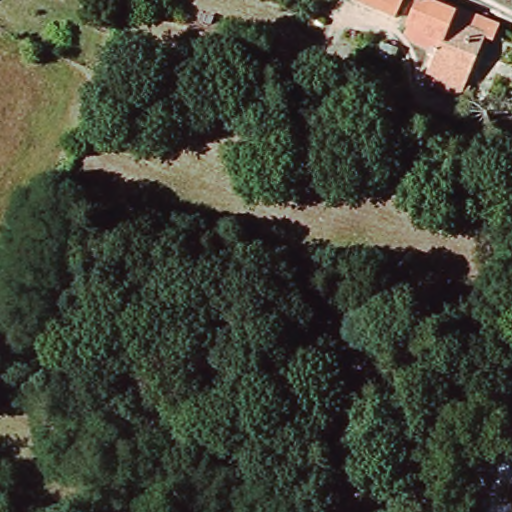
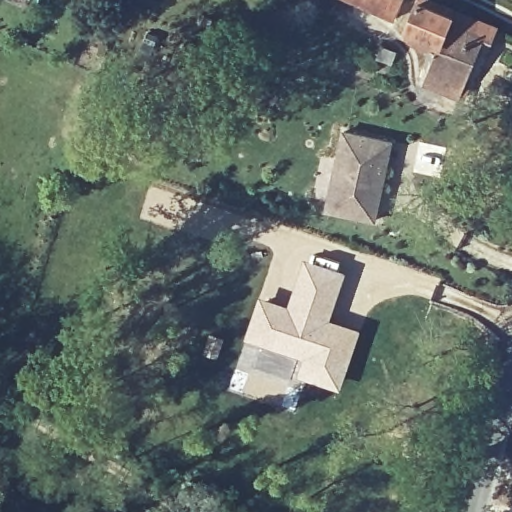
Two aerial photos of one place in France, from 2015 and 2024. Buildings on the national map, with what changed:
unchanged [(396,0),(386,22),(337,1),(337,0),(396,0)]
unchanged [(428,81),(441,53),(432,49),(437,39),(446,43),(448,38),(413,22),(423,0),(437,0),(463,12),(499,28),(496,36),(500,37),(472,101),(428,81)]
unchanged [(381,43),(384,35),(402,44),(398,51),(381,43)]
new [(347,129),(397,141),(378,221),(329,210),(347,129)]
new [(331,318),(360,329),(341,388),(298,375),(303,357),(245,337),(260,295),(289,304),(305,257),(345,272),(331,318)]
new [(207,329),(226,334),(219,358),(200,352),(207,329)]

